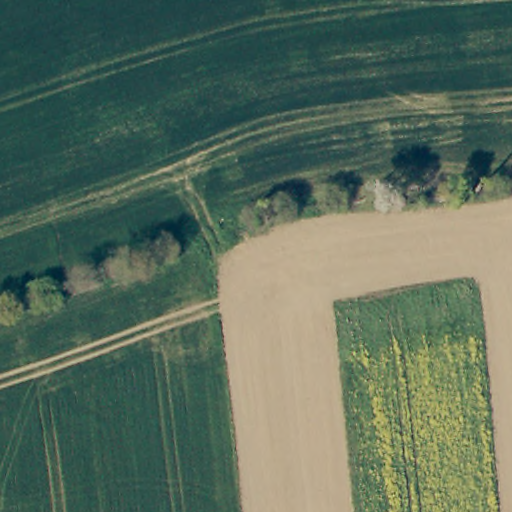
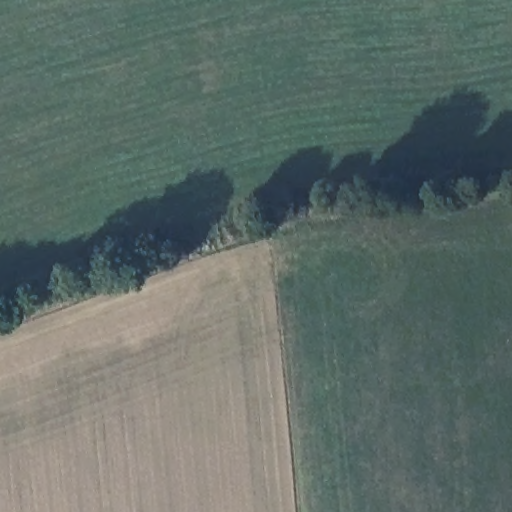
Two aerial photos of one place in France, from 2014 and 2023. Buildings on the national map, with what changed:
[]

